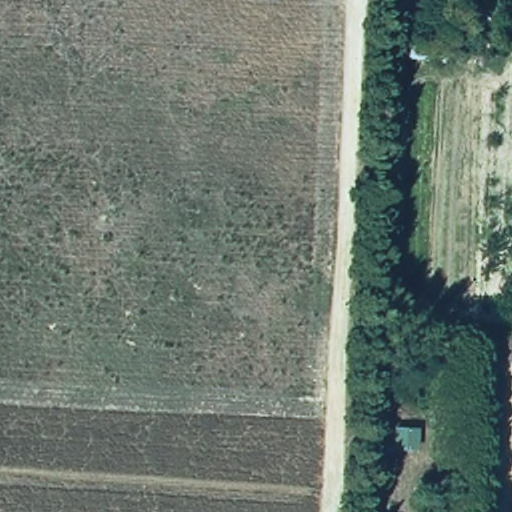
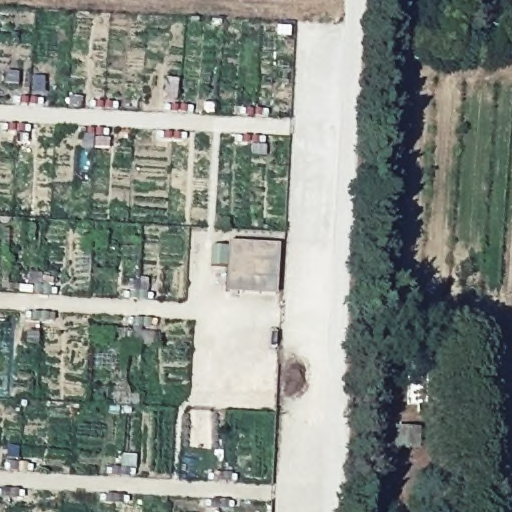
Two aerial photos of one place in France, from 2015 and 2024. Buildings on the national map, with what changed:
demolished [(404,8),(391,10),(390,0),(404,0),(404,8)]
new [(211,244),(228,245),(228,239),(279,243),(276,294),(224,291),(226,267),(209,265),(211,244)]

